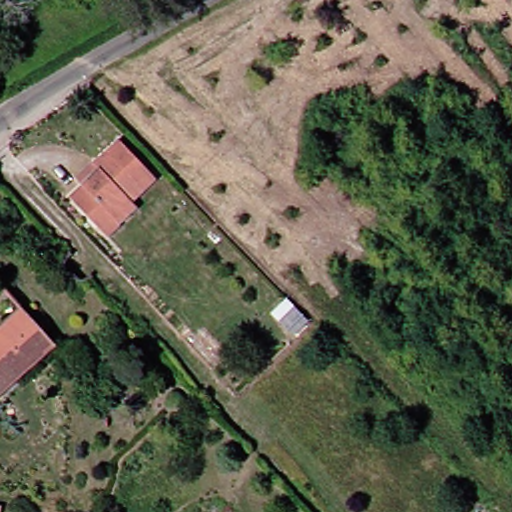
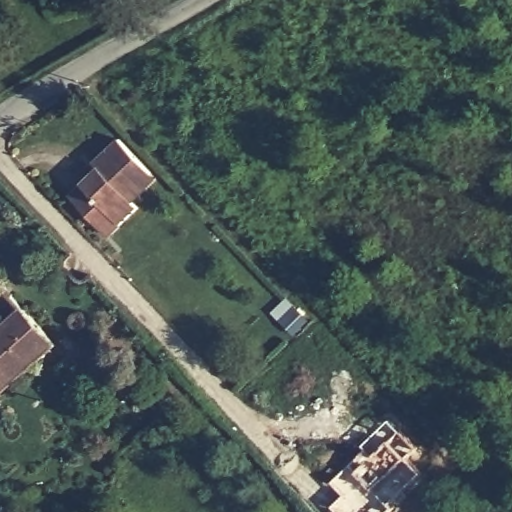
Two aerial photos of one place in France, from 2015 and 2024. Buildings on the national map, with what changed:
unchanged [(95,220),(72,195),(84,184),(77,177),(95,160),(121,137),(159,178),(135,200),(140,207),(121,225),(110,235),(95,220)]
unchanged [(27,308),(29,307),(64,343),(0,403),(0,334),(27,308)]
new [(346,494),(334,482),(367,449),(364,445),(392,420),(418,447),(407,458),(422,474),(390,504),(393,508),(389,512),(340,512),(334,505),(346,494)]

